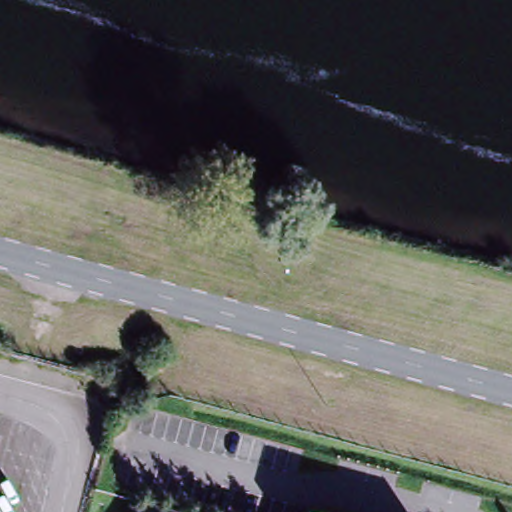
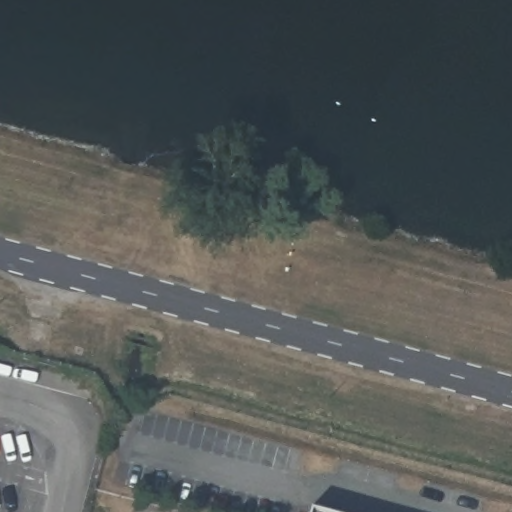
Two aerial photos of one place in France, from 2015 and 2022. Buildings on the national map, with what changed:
unchanged [(330,512),(311,512),(312,507),(330,512)]

